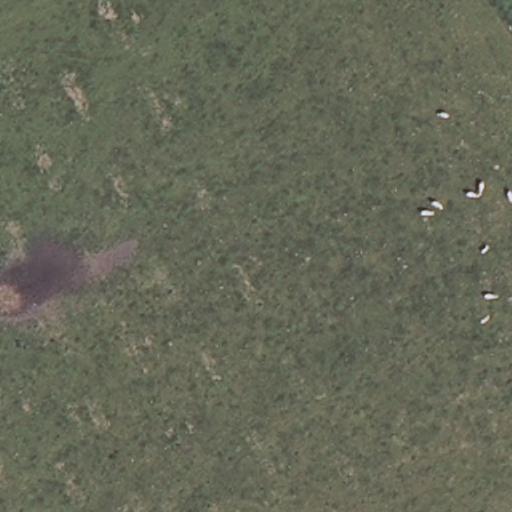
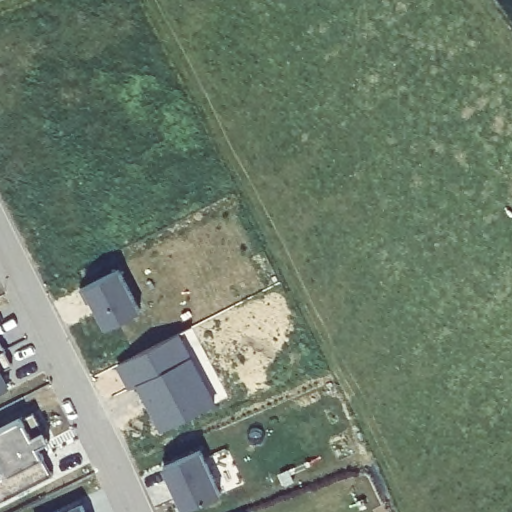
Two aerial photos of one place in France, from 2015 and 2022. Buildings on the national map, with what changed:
new [(92,301),(87,302),(80,287),(85,285),(121,268),(141,308),(105,327),(92,301)]
new [(179,338),(214,405),(160,434),(135,385),(127,390),(119,369),(179,338)]
new [(7,389),(0,393),(0,375),(7,389)]
new [(0,504),(0,429),(32,412),(48,443),(36,449),(51,478),(0,504)]
new [(165,466),(201,450),(221,493),(182,510),(165,466)]
new [(86,512),(60,512),(81,502),(86,512)]

